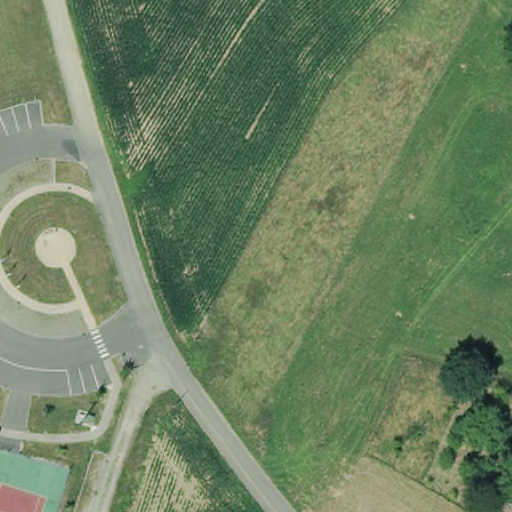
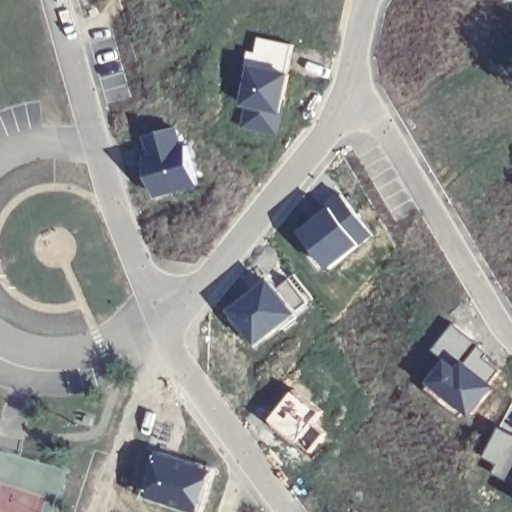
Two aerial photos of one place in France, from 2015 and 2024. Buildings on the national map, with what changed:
new [(242,107),(240,107),(248,66),(243,65),(247,49),(254,50),(257,36),(294,44),(288,71),(291,72),(279,135),(237,126),(242,107)]
new [(178,126),(200,184),(157,197),(145,155),(147,154),(143,135),(178,126)]
new [(343,195),(376,235),(330,270),(300,231),(343,195)]
new [(270,276),(279,286),(290,276),(315,299),(257,346),(227,310),(270,276)]
new [(452,322),(478,343),(459,365),(447,356),(443,360),(431,349),(452,322)]
new [(443,360),(447,356),(459,365),(478,343),(490,355),(488,357),(500,368),(491,379),(496,385),(470,417),(426,382),(443,360)]
new [(512,433),(512,473),(507,482),(492,473),(497,465),(482,457),(498,426),(512,433)]
new [(156,450),(214,468),(200,512),(191,512),(142,496),(156,450)]
new [(512,484),(507,482),(512,473),(512,484)]

